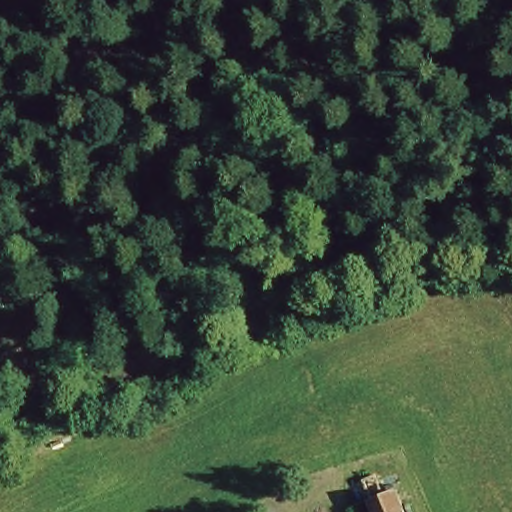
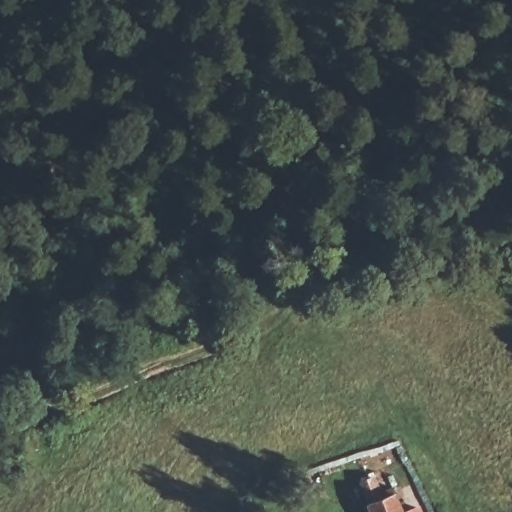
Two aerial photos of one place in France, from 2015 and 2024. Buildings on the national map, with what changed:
unchanged [(357,512),(343,480),(385,468),(407,512),(357,512)]

